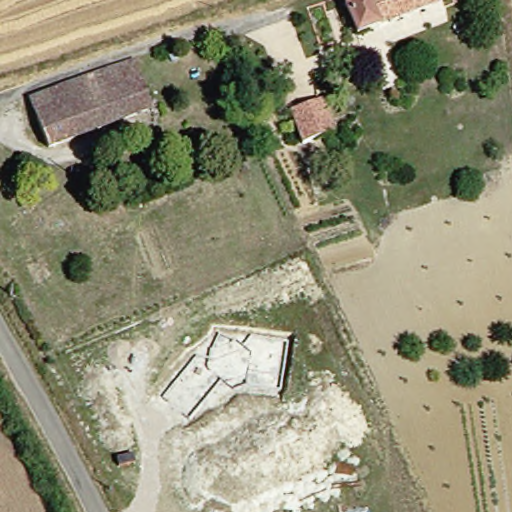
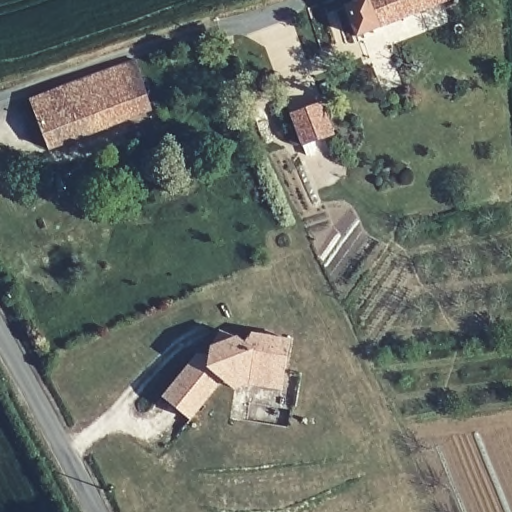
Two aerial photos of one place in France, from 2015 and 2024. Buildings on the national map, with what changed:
unchanged [(341,5),(353,0),(439,0),(354,36),(341,5)]
unchanged [(25,99),(82,80),(126,66),(134,86),(145,116),(125,124),(45,154),(25,99)]
unchanged [(288,117),(320,103),(333,136),(302,147),(288,117)]
new [(162,396),(196,353),(210,353),(210,345),(237,335),(244,341),(253,331),(290,338),(282,389),(250,384),(236,391),(223,379),(190,420),(162,396)]

